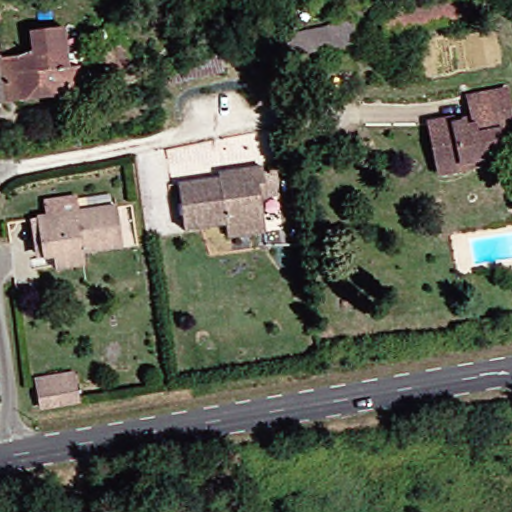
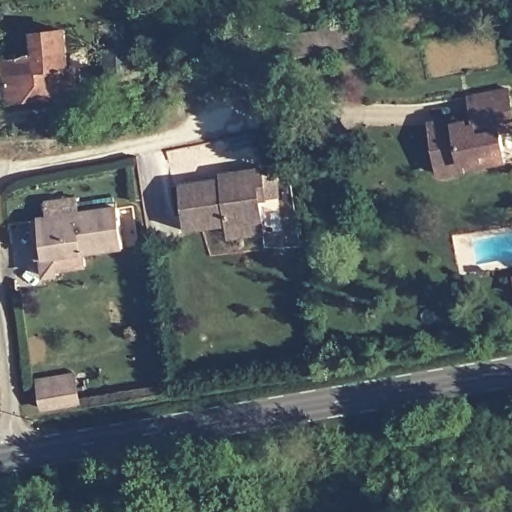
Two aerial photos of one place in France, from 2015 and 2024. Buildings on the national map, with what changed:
unchanged [(468,0),(481,0),(485,21),(391,39),(386,16),(468,0)]
unchanged [(143,18),(151,75),(122,79),(121,67),(117,68),(110,23),(143,18)]
unchanged [(265,42),(281,39),(360,25),(364,50),(285,64),(270,66),(265,42)]
unchanged [(77,93),(0,105),(0,61),(41,56),(38,33),(70,30),(74,67),(86,65),(89,91),(77,93)]
unchanged [(242,77),(196,89),(190,68),(237,56),(242,77)]
unchanged [(463,170),(440,174),(431,123),(453,118),(456,127),(469,125),(470,129),(477,128),(473,97),(511,90),(512,95),(512,132),(503,133),(506,150),(508,163),(463,170)]
unchanged [(228,230),(185,236),(177,183),(218,178),(217,172),(232,170),(267,166),(270,190),(272,205),(267,206),(269,225),(271,241),(231,247),(228,230)]
unchanged [(52,272),(50,255),(42,256),(37,217),(116,206),(122,245),(80,251),(82,268),(52,272)]
unchanged [(512,278),(512,288),(510,278),(512,278)]
unchanged [(75,383),(77,395),(51,400),(49,388),(75,383)]

